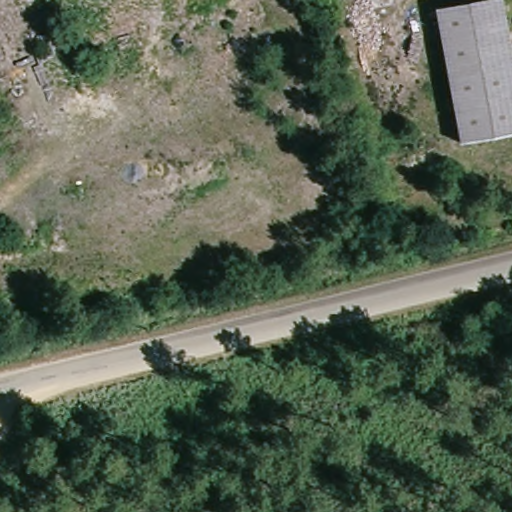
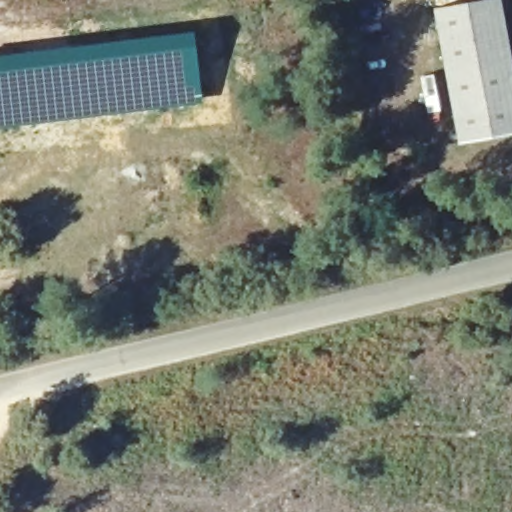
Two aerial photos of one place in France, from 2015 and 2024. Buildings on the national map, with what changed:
unchanged [(512,145),(472,150),(450,18),(512,8),(512,145)]
new [(33,49),(35,59),(57,57),(56,46),(193,29),(202,100),(107,115),(0,129),(0,54),(33,49)]

